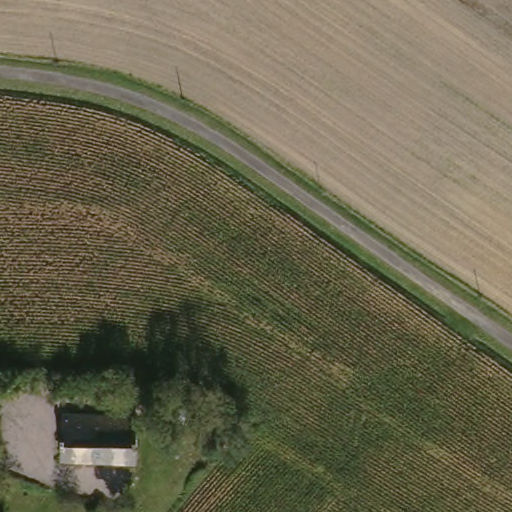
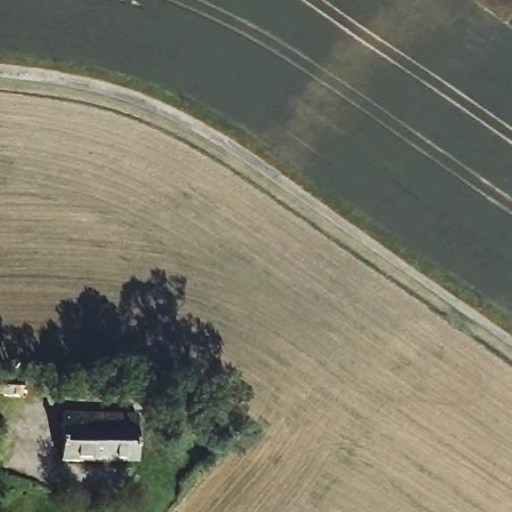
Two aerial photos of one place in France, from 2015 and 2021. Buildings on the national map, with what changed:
unchanged [(0,398),(0,379),(34,379),(34,396),(0,398)]
unchanged [(160,415),(162,402),(195,409),(193,421),(160,415)]
unchanged [(65,467),(64,418),(140,417),(142,465),(65,467)]

